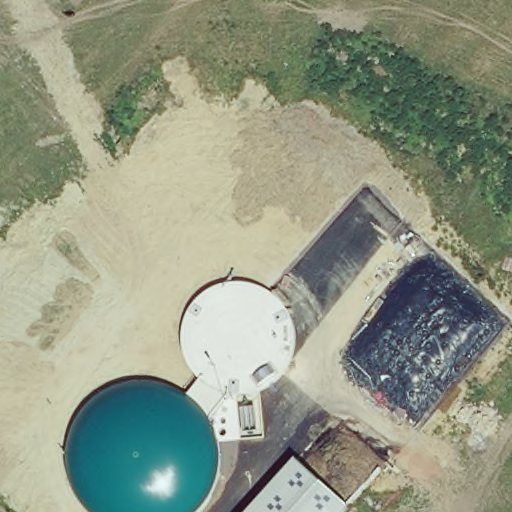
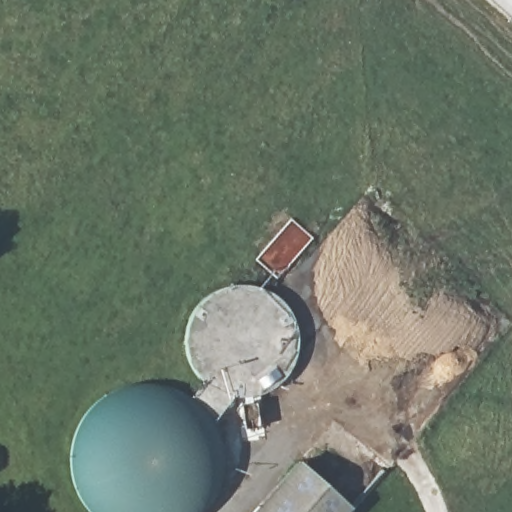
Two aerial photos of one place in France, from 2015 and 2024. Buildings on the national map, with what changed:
new [(494,0),(512,0),(512,16),(494,0)]
unchanged [(298,461),(350,507),(346,512),(251,512),(298,461)]

